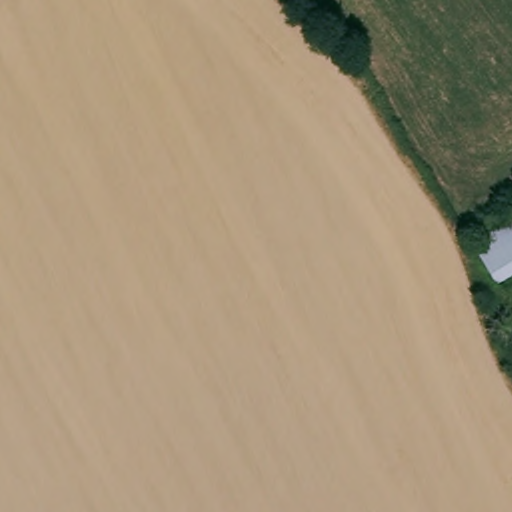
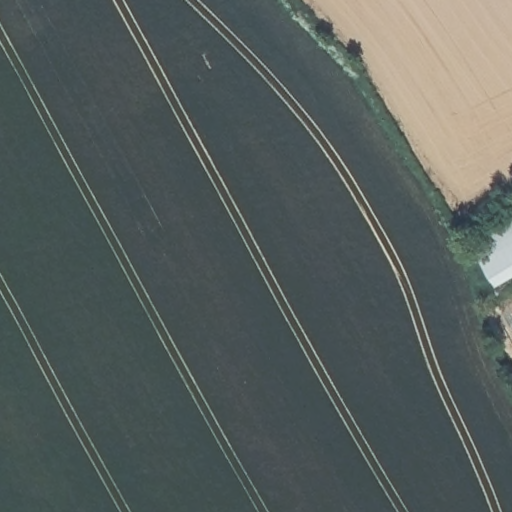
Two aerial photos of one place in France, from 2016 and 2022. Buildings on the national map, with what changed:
unchanged [(512,266),(494,275),(477,239),(512,220),(512,266)]

